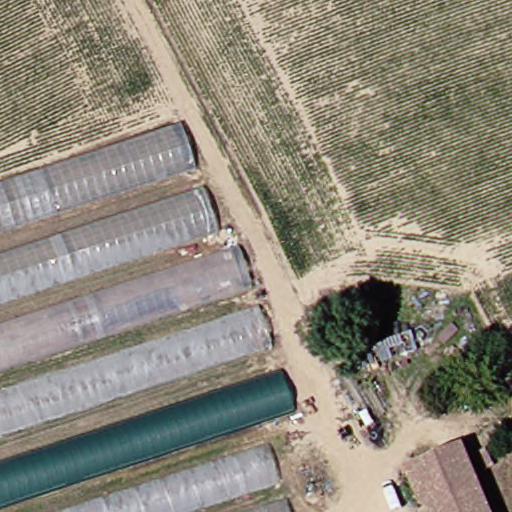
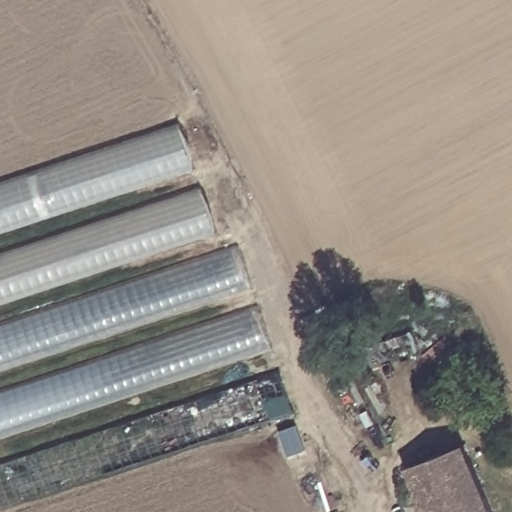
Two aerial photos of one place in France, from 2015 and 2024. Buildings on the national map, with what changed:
unchanged [(183,121),(222,231),(0,301),(0,181),(183,121)]
unchanged [(239,243),(297,408),(0,505),(0,323),(239,243)]
unchanged [(344,342),(406,317),(418,345),(387,358),(392,370),(362,382),(344,342)]
unchanged [(392,403),(398,417),(376,426),(370,412),(392,403)]
demolished [(268,442),(291,512),(52,512),(268,442)]
unchanged [(433,500),(424,503),(409,469),(471,442),(500,512),(437,512),(433,500)]

